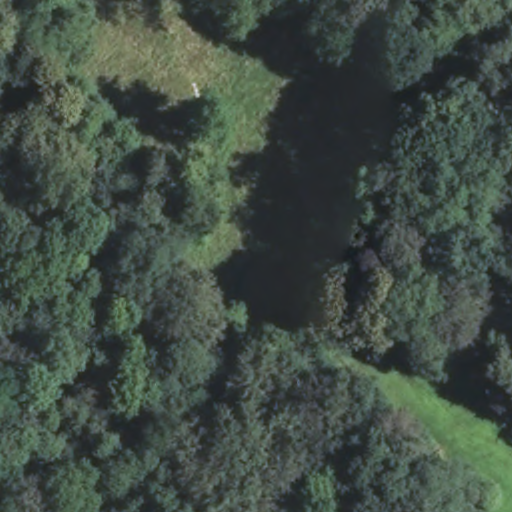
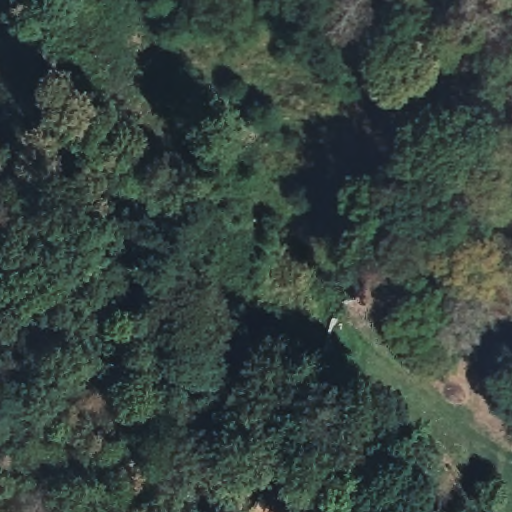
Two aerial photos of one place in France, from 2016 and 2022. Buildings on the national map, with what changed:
[]

